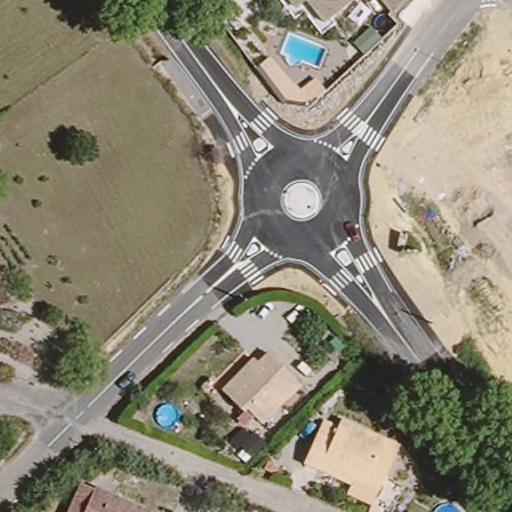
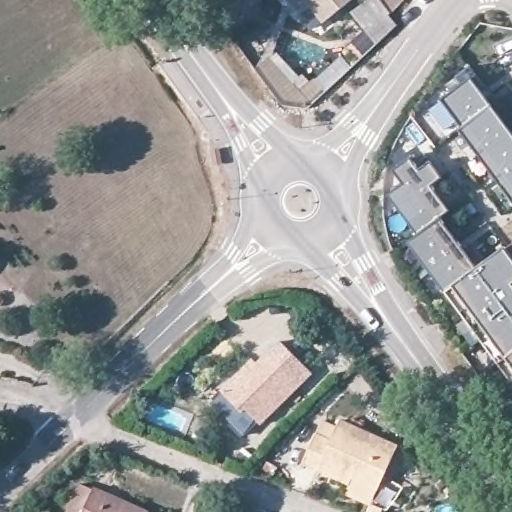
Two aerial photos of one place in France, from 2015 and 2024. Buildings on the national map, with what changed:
unchanged [(356,0),(325,23),(307,0),(297,8),(291,0),(356,0)]
new [(475,74),(483,85),(478,88),(512,133),(512,196),(447,108),(440,100),(475,74)]
new [(497,363),(479,339),(471,345),(455,324),(463,318),(405,242),(415,235),(385,195),(400,184),(390,170),(412,154),(421,166),(428,160),(440,177),(430,185),(448,210),(438,218),(475,268),(512,241),(512,383),(497,363)]
unchanged [(264,424),(250,409),(247,412),(226,390),(244,373),(258,360),(262,363),(272,353),(303,387),(264,424)]
new [(507,392),(512,388),(512,400),(507,392)]
unchanged [(347,493),(353,482),(322,466),(307,458),(321,429),(335,437),(345,416),(402,445),(382,488),(374,484),(365,502),(347,493)]
unchanged [(235,505),(203,491),(208,477),(242,491),(235,505)]
unchanged [(77,480),(90,487),(141,512),(62,512),(77,480)]

